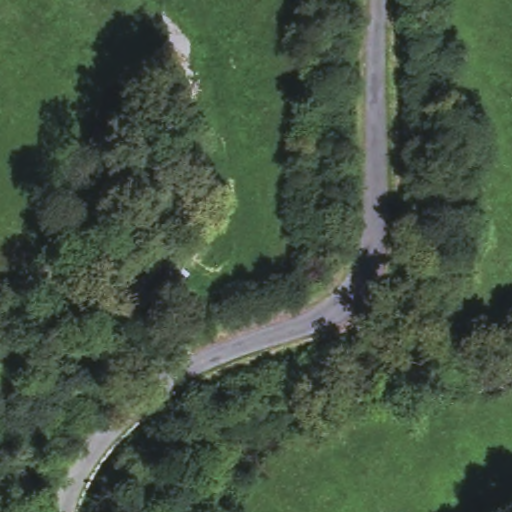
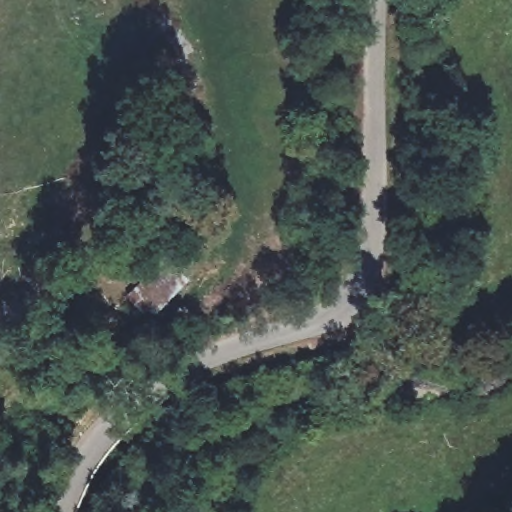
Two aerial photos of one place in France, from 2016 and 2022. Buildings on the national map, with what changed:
unchanged [(184,277),(138,310),(122,291),(161,253),(184,277)]

